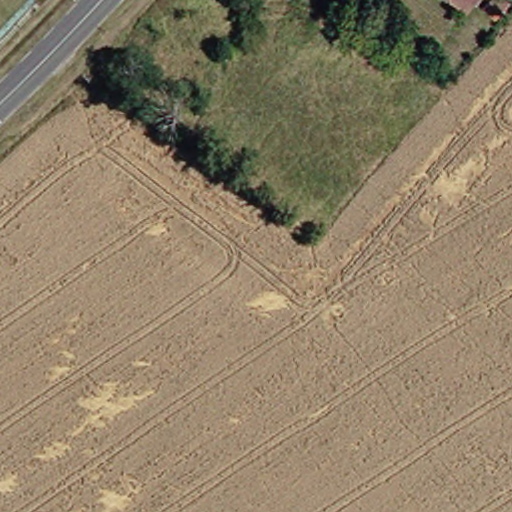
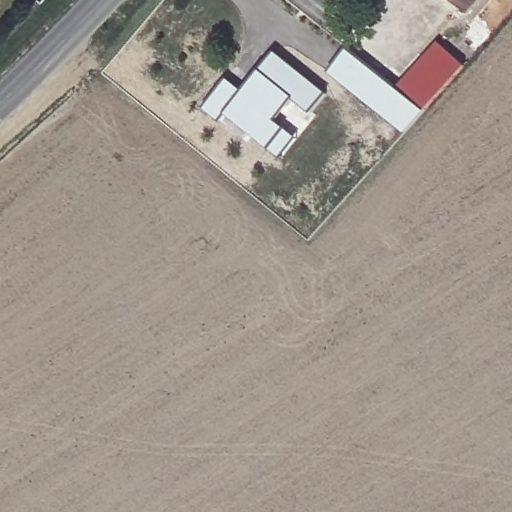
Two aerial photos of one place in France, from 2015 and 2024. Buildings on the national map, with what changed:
unchanged [(452,0),(472,0),(463,10),(452,0)]
unchanged [(485,0),(506,0),(496,11),(485,1),(485,0)]
new [(439,41),(467,65),(426,110),(397,87),(439,41)]
new [(349,49),(397,87),(426,110),(406,133),(330,72),(349,49)]
new [(230,79),(245,90),(277,51),(328,93),(312,113),(295,98),(277,119),(298,138),(282,158),(227,114),(220,122),(203,109),(230,79)]

